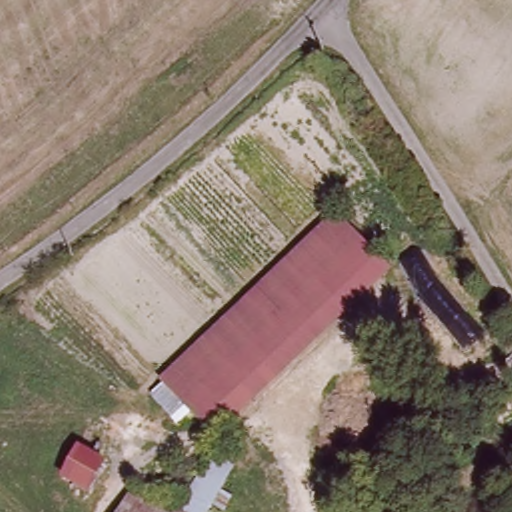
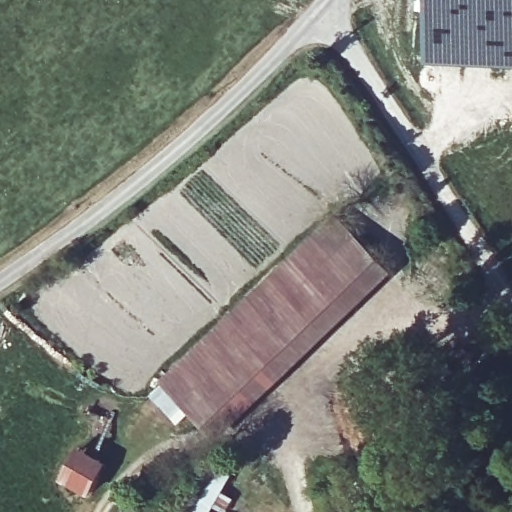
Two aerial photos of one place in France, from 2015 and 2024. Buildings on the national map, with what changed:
new [(512,0),(512,68),(425,64),(427,0),(512,0)]
unchanged [(381,250),(224,434),(177,395),(335,210),(381,250)]
unchanged [(212,446),(237,460),(208,512),(175,512),(212,446)]
unchanged [(75,450),(105,460),(96,486),(67,476),(75,450)]
unchanged [(124,493),(164,512),(116,512),(124,493)]

